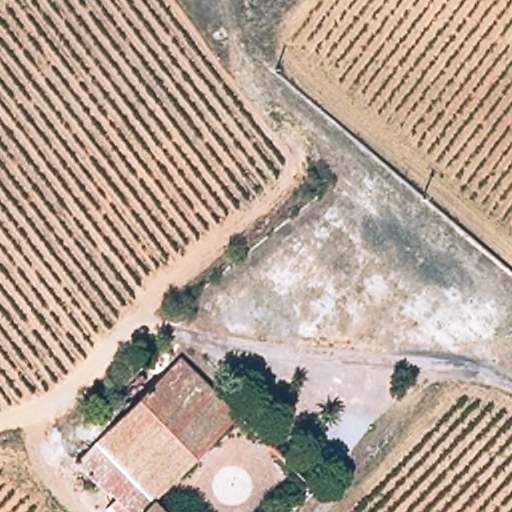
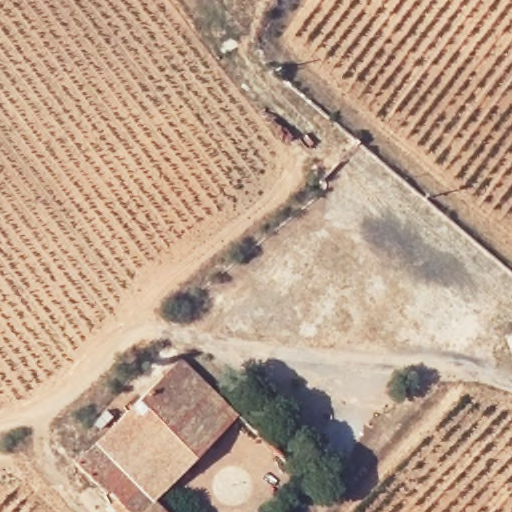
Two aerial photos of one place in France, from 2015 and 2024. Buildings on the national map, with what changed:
unchanged [(154,491),(176,512),(131,512),(75,455),(181,351),(239,408),(154,491)]

